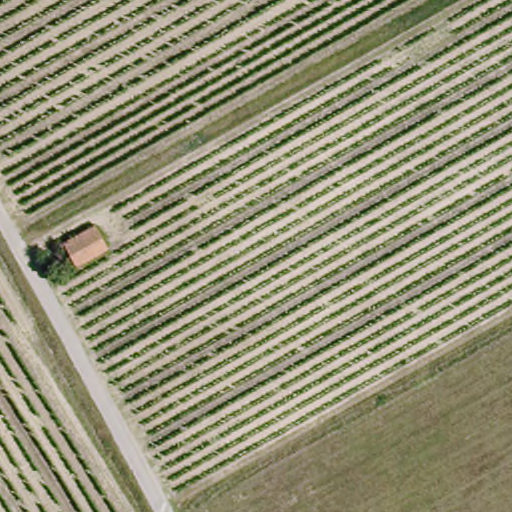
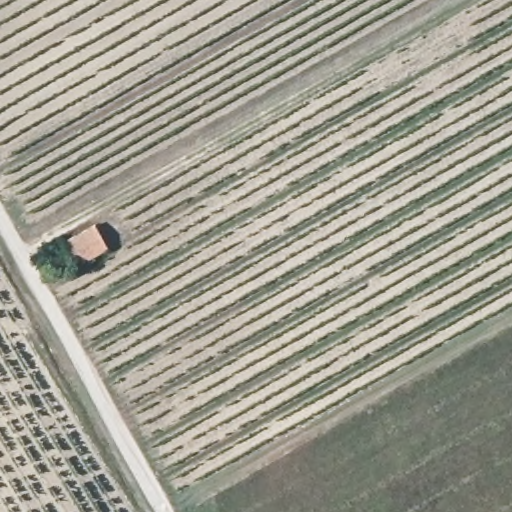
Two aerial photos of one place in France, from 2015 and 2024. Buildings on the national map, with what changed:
unchanged [(64,239),(93,224),(104,244),(75,260),(64,239)]

